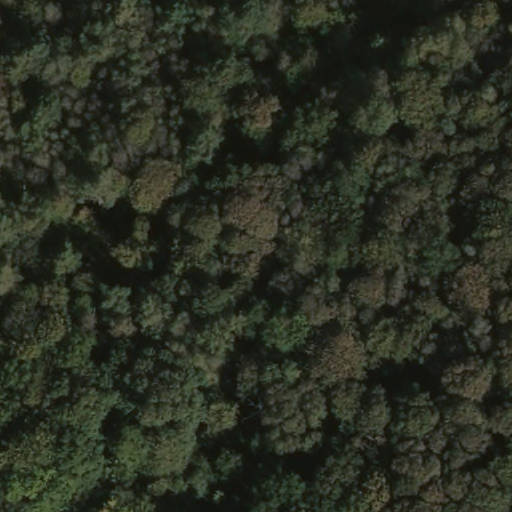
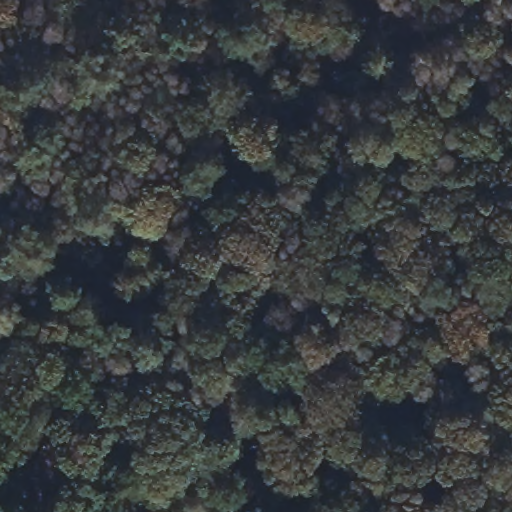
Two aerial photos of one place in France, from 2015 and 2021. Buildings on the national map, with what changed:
[]

